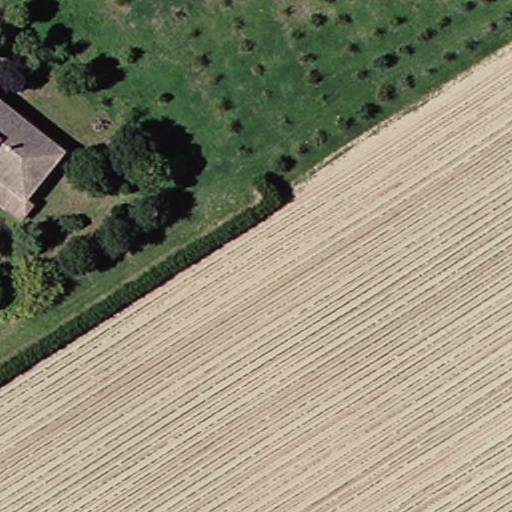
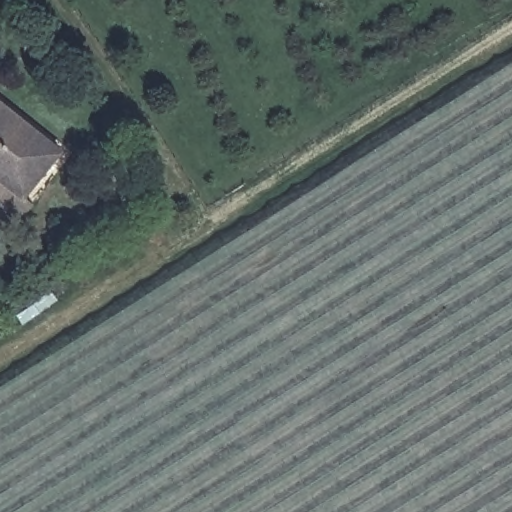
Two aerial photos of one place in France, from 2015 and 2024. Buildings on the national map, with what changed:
unchanged [(58,164),(20,214),(0,199),(0,120),(30,142),(58,164)]

